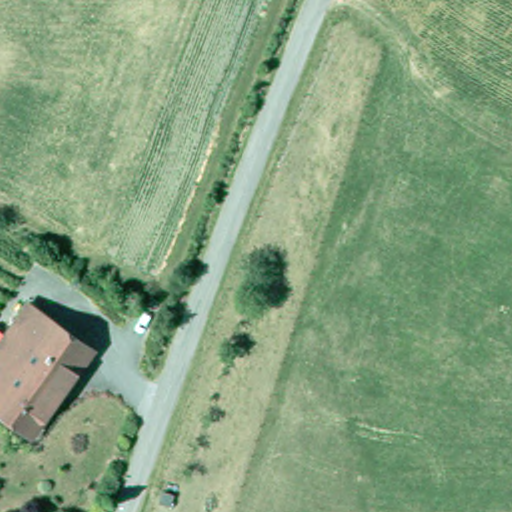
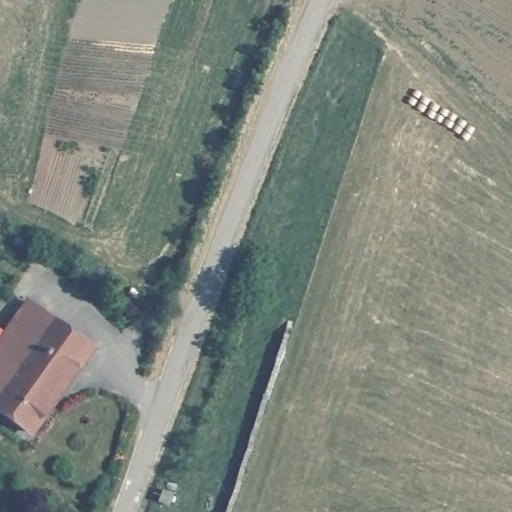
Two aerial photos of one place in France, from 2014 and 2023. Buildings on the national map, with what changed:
unchanged [(53,386),(25,426),(0,410),(0,326),(20,297),(89,342),(60,386),(53,386)]

